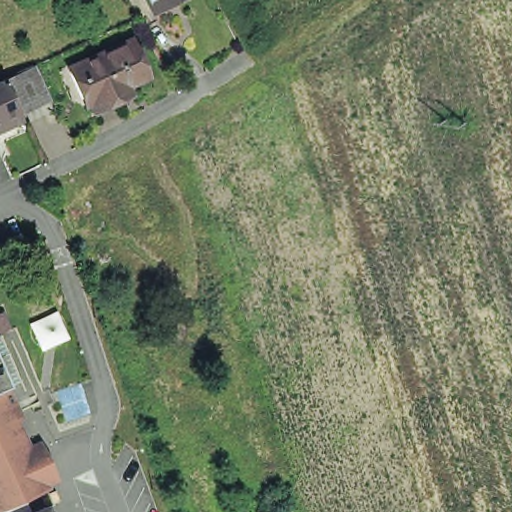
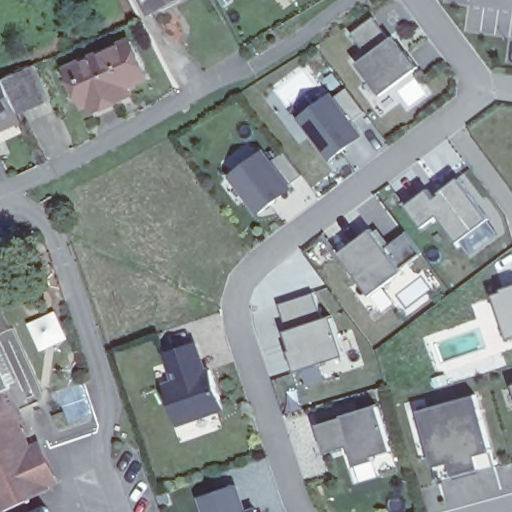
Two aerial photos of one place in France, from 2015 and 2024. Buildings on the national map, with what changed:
unchanged [(141,0),(176,0),(176,1),(150,16),(141,0)]
new [(380,95),(357,64),(368,55),(351,34),(374,16),(392,38),(403,53),(405,51),(417,67),(380,95)]
unchanged [(112,91),(91,101),(77,72),(69,56),(77,53),(125,29),(142,64),(120,75),(125,85),(112,91)]
unchanged [(32,66),(48,99),(24,110),(0,121),(0,82),(7,79),(32,66)]
new [(366,113),(352,123),(363,137),(331,161),(300,119),(332,95),(336,100),(338,99),(336,98),(348,89),(366,113)]
new [(258,216),(227,176),(263,148),(293,187),(258,216)]
new [(490,220),(455,248),(435,219),(418,232),(400,209),(423,192),(431,199),(461,182),(490,220)]
new [(403,270),(405,273),(372,297),(341,256),(374,232),(386,249),(407,233),(424,254),(403,270)]
new [(512,291),(512,341),(502,344),(487,299),(512,291)]
new [(336,359),(290,374),(280,335),(287,333),(280,306),(315,294),(336,359)]
new [(177,384),(166,354),(197,344),(207,373),(211,371),(225,410),(180,426),(166,388),(177,384)]
unchanged [(0,359),(12,387),(0,393),(0,359)]
unchanged [(35,444),(42,442),(62,484),(51,487),(57,496),(49,501),(26,512),(0,512),(0,393),(12,387),(35,444)]
new [(440,486),(420,412),(477,396),(498,470),(481,474),(456,481),(440,486)]
new [(390,451),(372,456),(373,459),(355,465),(349,445),(325,453),(317,424),(342,417),(342,415),(376,404),(390,451)]
new [(245,512),(206,512),(201,499),(236,487),(245,512)]
unchanged [(49,501),(54,512),(26,512),(49,501)]

